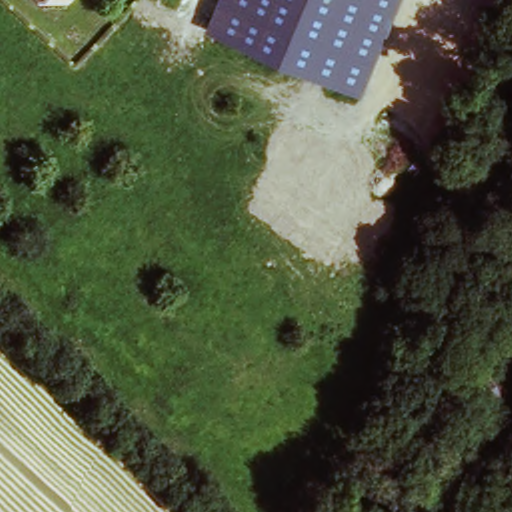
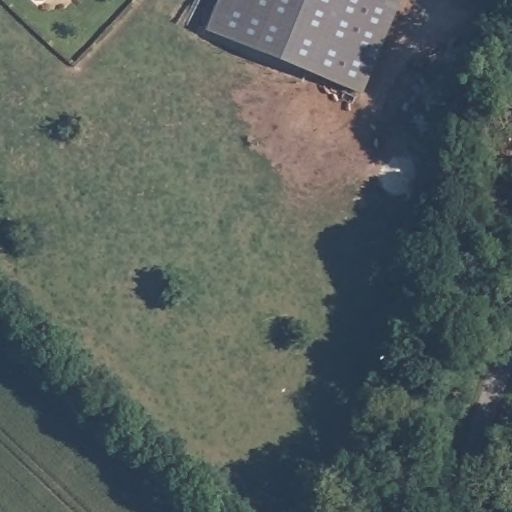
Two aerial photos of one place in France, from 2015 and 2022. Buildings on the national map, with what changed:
unchanged [(363,94),(208,30),(221,0),(402,0),(363,94)]

